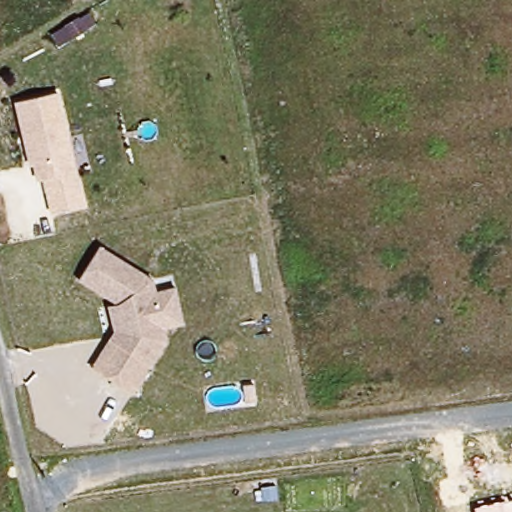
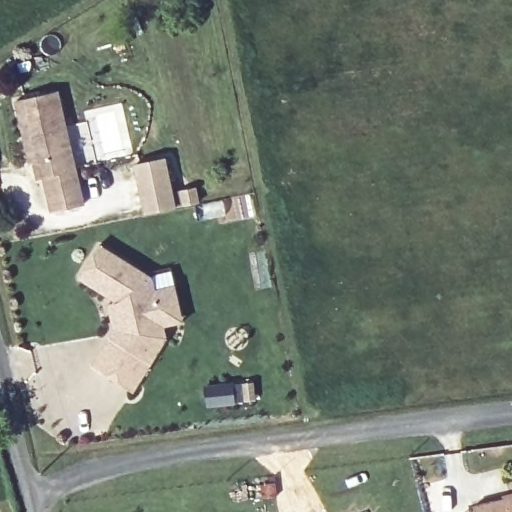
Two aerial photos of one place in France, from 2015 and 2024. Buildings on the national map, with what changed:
unchanged [(52,212),(44,180),(36,181),(33,162),(26,164),(13,100),(60,88),(86,205),(52,212)]
new [(134,165),(167,157),(174,191),(189,188),(193,204),(144,214),(134,165)]
unchanged [(90,362),(113,325),(108,296),(77,278),(100,241),(154,275),(156,286),(176,282),(185,322),(165,326),(167,340),(134,391),(90,362)]
unchanged [(512,498),(512,512),(475,512),(474,506),(512,498)]

